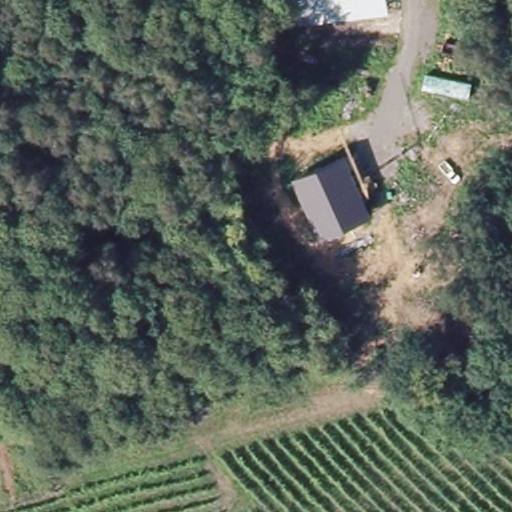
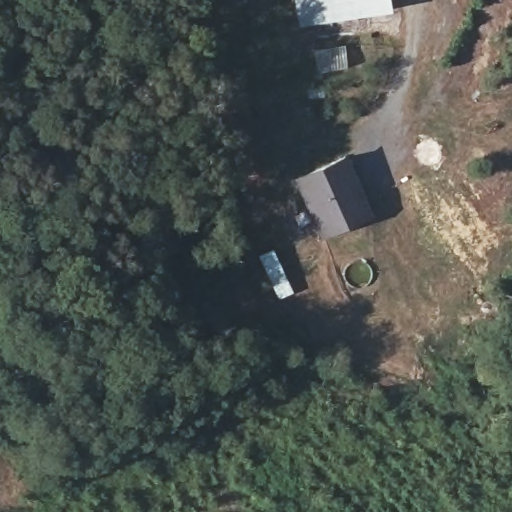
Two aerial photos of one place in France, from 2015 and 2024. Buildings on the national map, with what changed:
unchanged [(291,28),(287,0),(389,0),(390,10),(291,28)]
unchanged [(373,216),(320,239),(292,179),(346,154),(373,216)]

